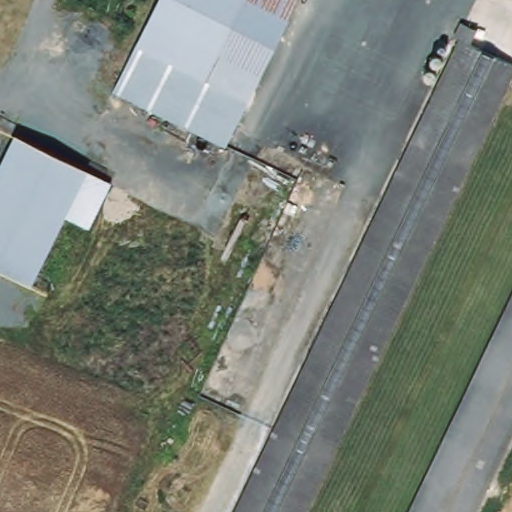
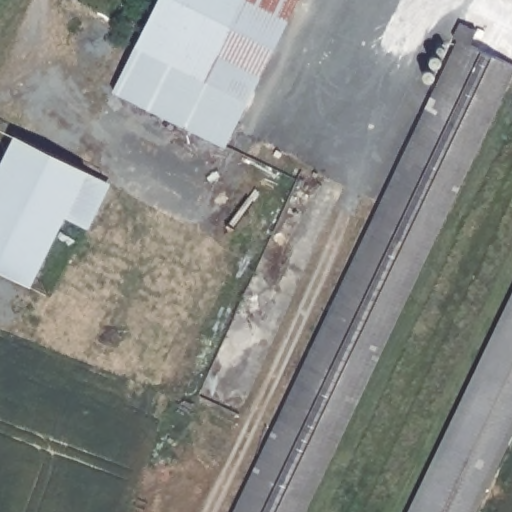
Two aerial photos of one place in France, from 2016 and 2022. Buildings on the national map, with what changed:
unchanged [(137,36),(155,0),(295,0),(220,146),(110,90),(137,36)]
unchanged [(273,440),(465,30),(512,51),(512,75),(433,242),(326,470),(273,440)]
unchanged [(31,284),(0,269),(0,174),(19,138),(89,172),(31,284)]
unchanged [(492,481),(478,512),(413,512),(512,296),(512,439),(492,481)]
unchanged [(238,512),(273,440),(326,470),(307,512),(238,512)]

